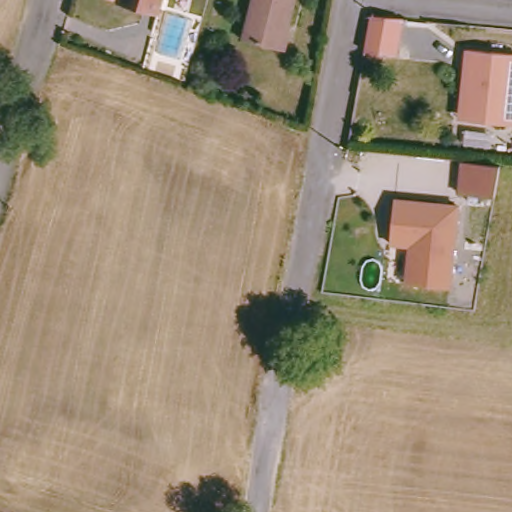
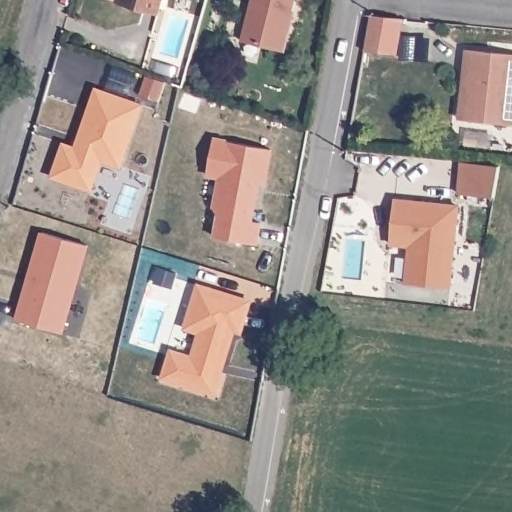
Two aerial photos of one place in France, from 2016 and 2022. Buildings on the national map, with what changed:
unchanged [(172,0),(168,15),(117,0),(172,0)]
unchanged [(244,42),(254,0),(295,0),(281,51),(244,42)]
new [(370,17),(401,20),(398,56),(364,52),(370,17)]
unchanged [(467,51),(512,55),(512,125),(466,121),(460,120),(464,86),(467,51)]
new [(75,148),(95,90),(103,92),(113,65),(136,72),(126,101),(141,106),(119,167),(100,161),(90,191),(51,177),(62,145),(75,148)]
new [(271,150),(265,186),(255,184),(253,195),(257,196),(252,222),(261,224),(257,246),(216,238),(220,217),(215,210),(221,178),(207,175),(209,166),(214,140),(271,150)]
new [(462,163),(500,166),(494,197),(459,195),(462,163)]
unchanged [(394,244),(398,201),(462,207),(454,287),(410,283),(413,251),(414,245),(394,244)]
new [(28,283),(33,285),(36,276),(31,274),(44,232),(89,247),(62,333),(16,319),(28,283)]
new [(158,269),(175,274),(171,287),(154,282),(158,269)]
new [(171,351),(192,358),(200,333),(185,328),(198,286),(249,302),(241,327),(235,325),(229,343),(225,341),(217,366),(222,368),(215,388),(164,373),(171,351)]

